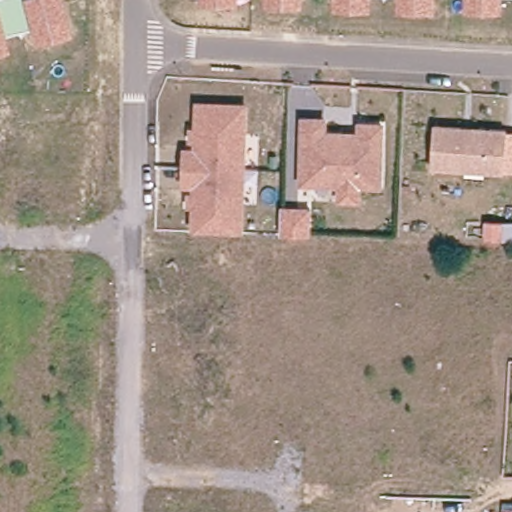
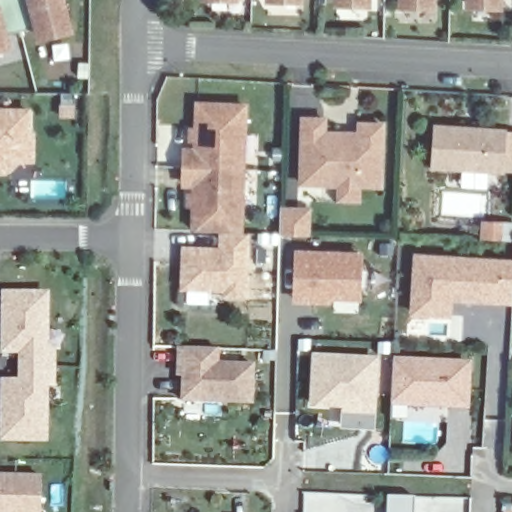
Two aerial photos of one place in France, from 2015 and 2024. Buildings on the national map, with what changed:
unchanged [(75,32),(37,43),(33,25),(7,32),(12,49),(0,53),(0,0),(67,0),(75,32)]
unchanged [(239,1),(200,1),(200,0),(239,0),(239,1)]
unchanged [(303,5),(265,5),(265,0),(303,0),(303,5)]
unchanged [(333,0),(372,0),(372,8),(333,7),(333,0)]
unchanged [(435,10),(396,10),(396,0),(436,0),(435,10)]
unchanged [(465,0),(503,0),(503,10),(465,9),(465,0)]
unchanged [(247,101),(242,228),(195,226),(197,179),(186,179),(187,146),(198,146),(200,99),(247,101)]
new [(31,133),(36,133),(35,163),(16,164),(6,173),(0,173),(0,108),(31,108),(31,133)]
unchanged [(321,134),(340,134),(357,135),(357,125),(379,125),(377,186),(298,184),(300,119),(321,120),(321,134)]
unchanged [(506,173),(433,168),(436,126),(463,127),(475,128),(509,130),(512,131),(512,173),(506,173)]
unchanged [(338,185),(361,185),(360,203),(337,202),(337,185),(338,185)]
unchanged [(280,206),(310,207),(310,235),(280,234),(280,206)]
new [(223,298),(223,292),(180,289),(182,247),(218,248),(219,234),(249,234),(248,298),(223,298)]
new [(512,259),(512,304),(452,303),(452,317),(410,315),(413,252),(512,259)]
new [(362,256),(358,299),(327,298),(326,302),(311,301),(312,277),(295,276),(297,254),(362,256)]
new [(50,347),(56,347),(56,388),(48,388),(47,443),(0,443),(0,379),(17,378),(16,355),(0,354),(1,290),(49,291),(50,347)]
unchanged [(182,347),(219,348),(219,363),(255,365),(253,402),(184,400),(185,364),(181,364),(182,347)]
new [(378,358),(373,431),(341,430),(341,409),(309,408),(311,355),(378,358)]
new [(391,407),(393,358),(471,361),(469,410),(391,407)]
new [(42,512),(0,512),(0,476),(43,476),(42,512)]

